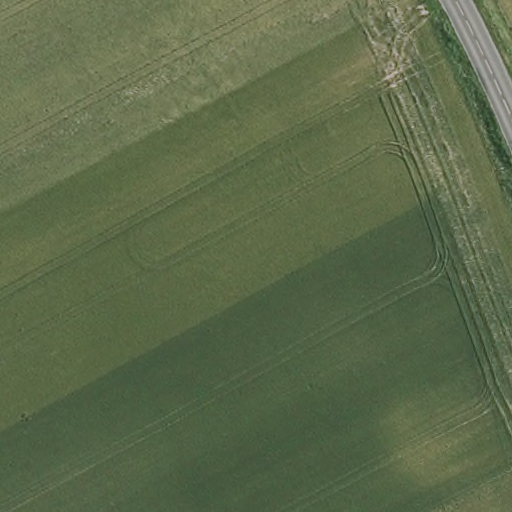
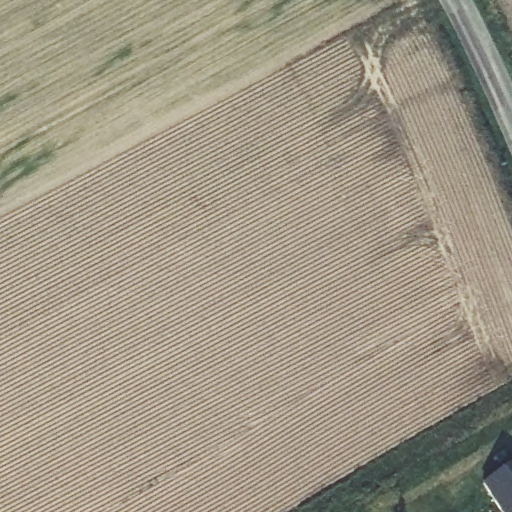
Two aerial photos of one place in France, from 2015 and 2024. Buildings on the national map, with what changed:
new [(512,465),(512,512),(500,512),(482,484),(512,465)]

